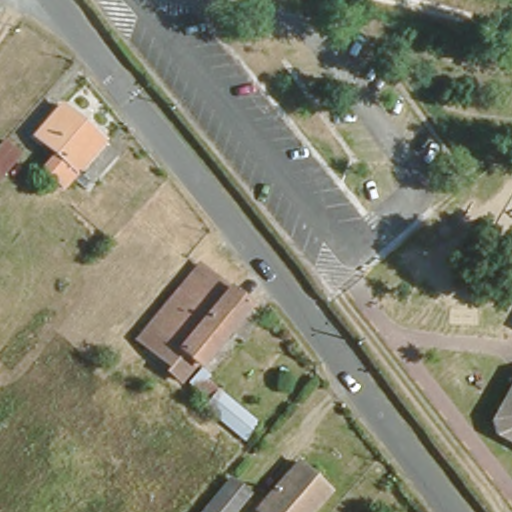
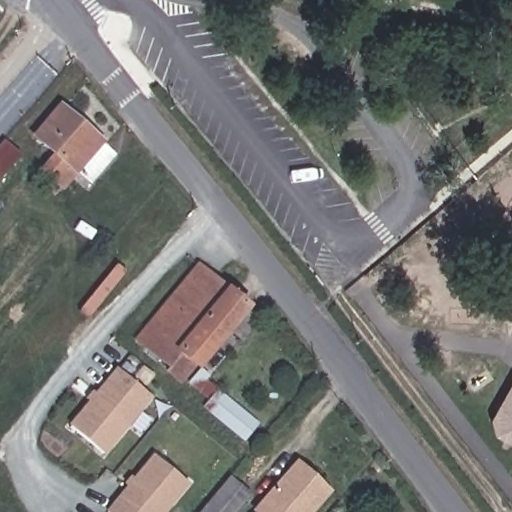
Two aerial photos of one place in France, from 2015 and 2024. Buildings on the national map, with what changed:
unchanged [(89,183),(73,170),(59,187),(39,170),(55,150),(35,132),(57,103),(98,138),(114,150),(89,183)]
unchanged [(172,361),(136,332),(199,255),(230,280),(185,342),(172,361)]
unchanged [(185,342),(230,280),(252,297),(205,357),(185,342)]
new [(172,361),(185,342),(205,357),(249,301),(253,306),(199,370),(194,366),(180,385),(164,372),(167,368),(134,340),(138,333),(172,361)]
new [(86,399),(93,390),(96,393),(118,368),(154,398),(105,455),(69,424),(88,401),(86,399)]
unchanged [(499,424),(495,411),(504,394),(512,394),(512,433),(499,424)]
new [(220,395),(259,426),(247,442),(208,410),(220,395)]
new [(130,475),(133,478),(154,454),(189,484),(167,512),(105,512),(126,486),(123,484),(130,475)]
unchanged [(305,512),(269,512),(273,506),(262,495),(290,460),(319,481),(325,486),(305,512)]
unchanged [(247,492),(230,512),(197,512),(225,476),(247,492)]

